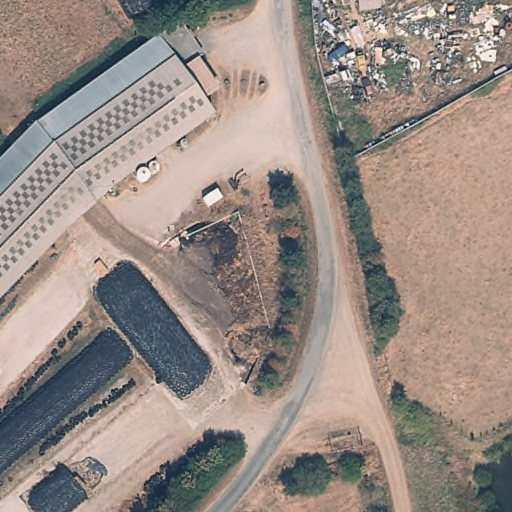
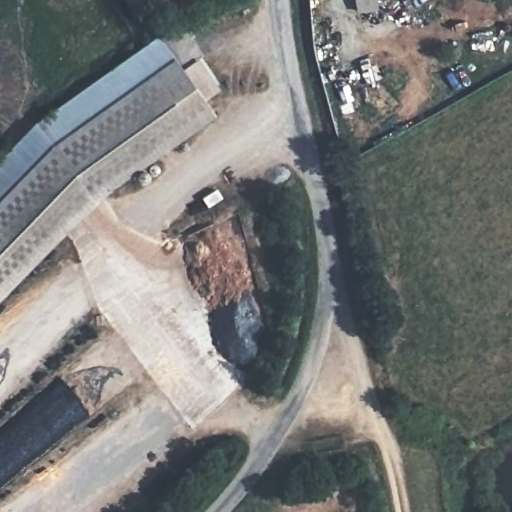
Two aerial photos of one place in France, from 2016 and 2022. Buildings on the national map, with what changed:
unchanged [(360,9),(359,0),(380,0),(381,6),(360,9)]
unchanged [(167,148),(94,199),(0,297),(0,156),(38,117),(153,37),(209,117),(167,148)]

